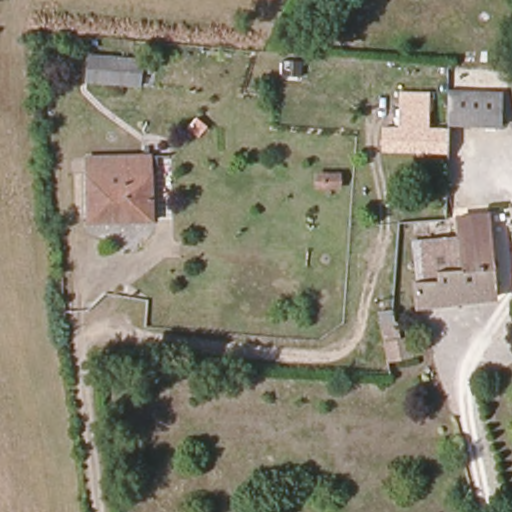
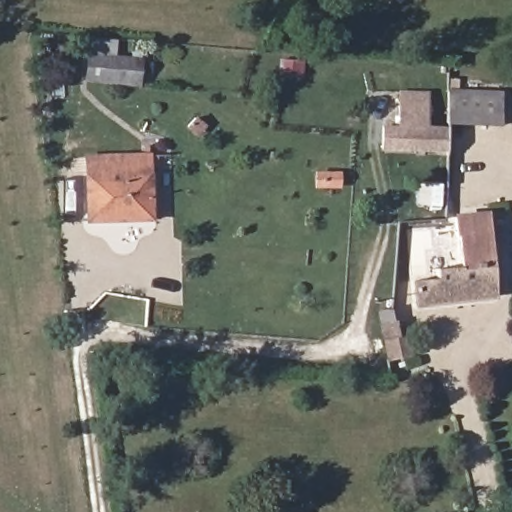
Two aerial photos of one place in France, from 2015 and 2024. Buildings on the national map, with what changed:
unchanged [(142,76),(95,76),(95,60),(142,59),(142,76)]
unchanged [(385,124),(402,125),(407,90),(433,93),(432,127),(453,129),(453,155),(385,150),(385,124)]
unchanged [(453,122),(454,93),(502,93),(503,122),(453,122)]
unchanged [(92,224),(84,162),(147,158),(154,219),(92,224)]
unchanged [(420,282),(436,281),(436,273),(462,270),(460,238),(458,217),(486,216),(487,208),(502,205),(504,222),(486,222),(492,299),(413,305),(412,283),(420,282)]
unchanged [(417,242),(460,238),(462,270),(436,273),(436,281),(420,282),(417,242)]
unchanged [(382,309),(396,308),(397,316),(402,316),(403,329),(411,328),(416,355),(390,359),(382,309)]

